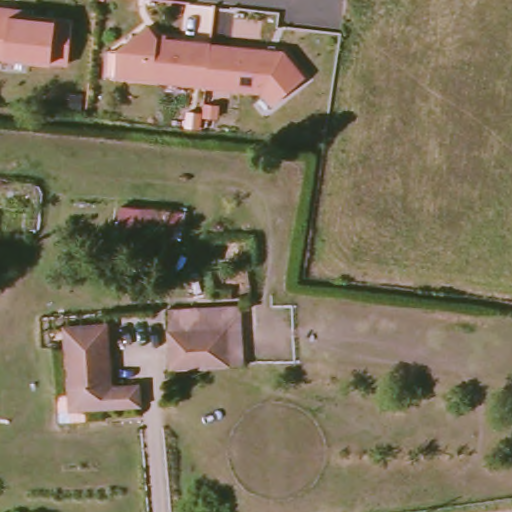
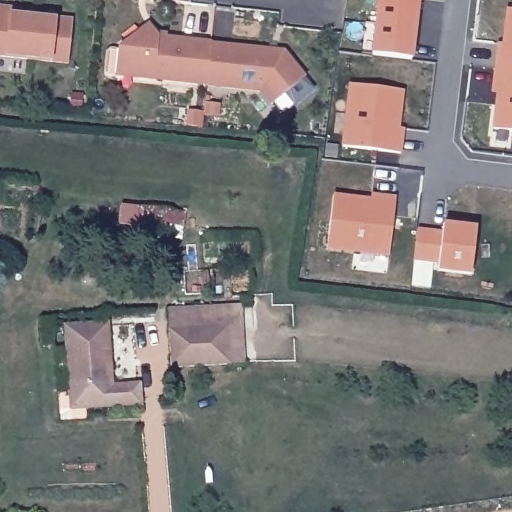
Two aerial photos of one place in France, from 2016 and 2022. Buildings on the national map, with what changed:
new [(372,56),(379,0),(418,0),(411,60),(372,56)]
unchanged [(13,7),(12,12),(75,19),(70,62),(0,55),(0,6),(13,7)]
new [(502,55),(507,10),(512,11),(512,71),(495,69),(497,54),(502,55)]
unchanged [(115,52),(145,29),(155,41),(208,46),(208,47),(206,67),(205,76),(205,88),(124,80),(112,78),(115,52)]
unchanged [(280,54),(301,79),(270,106),(260,94),(205,89),(205,88),(205,76),(206,67),(208,47),(280,54)]
new [(512,132),(493,130),(498,85),(493,85),(495,69),(512,71),(512,132)]
new [(397,138),(402,139),(400,154),(343,147),(350,85),(403,92),(397,138)]
unchanged [(183,111),(202,112),(200,130),(182,128),(183,111)]
new [(380,202),(381,197),(396,199),(390,256),(327,249),(334,197),(380,202)]
new [(471,275),(438,271),(439,263),(414,260),(417,231),(442,233),(443,226),(476,230),(471,275)]
unchanged [(170,371),(166,311),(241,303),(248,363),(170,371)]
unchanged [(60,423),(58,395),(70,393),(65,329),(103,326),(110,390),(136,388),(138,405),(85,408),(86,421),(60,423)]

